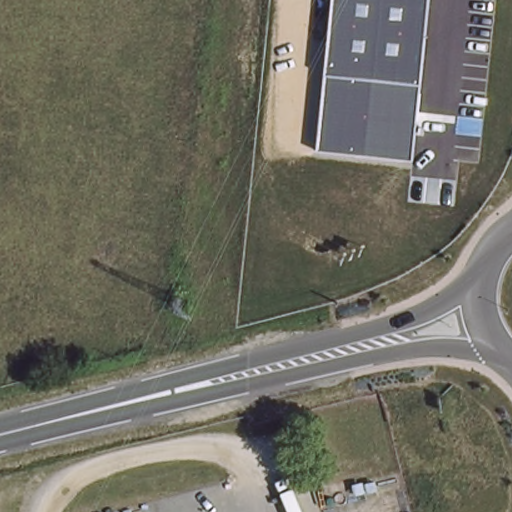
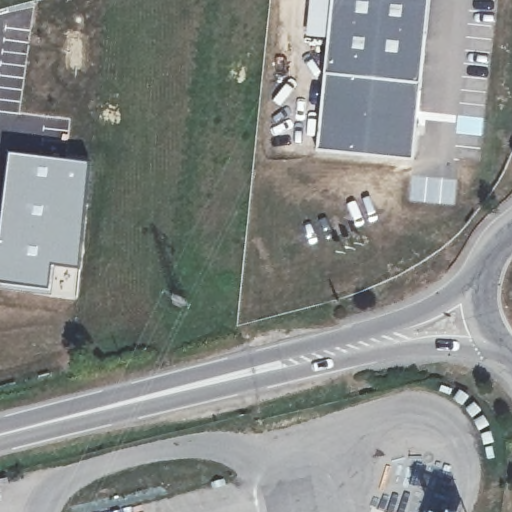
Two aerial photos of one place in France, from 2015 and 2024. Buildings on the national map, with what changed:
unchanged [(316,149),(331,0),(428,0),(411,159),(316,149)]
new [(90,162),(80,269),(53,267),(50,292),(0,285),(0,218),(9,151),(90,162)]

